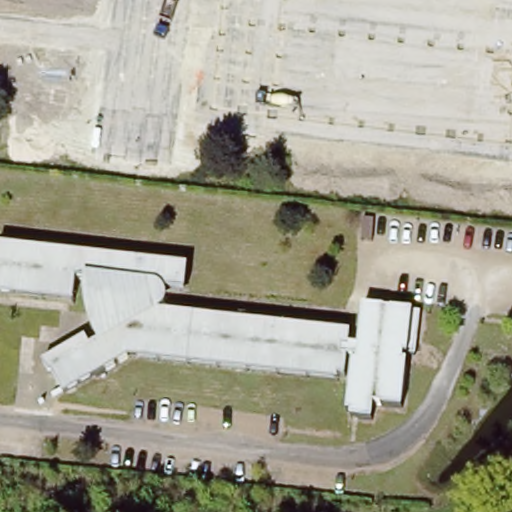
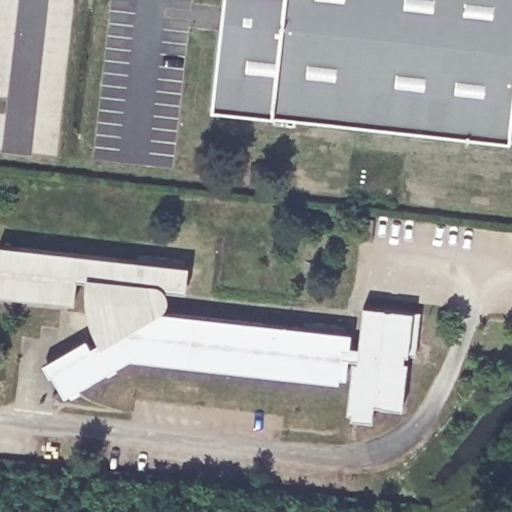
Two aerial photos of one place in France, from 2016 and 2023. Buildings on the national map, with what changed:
new [(272,115),(211,109),(223,0),(512,0),(512,107),(508,142),(272,115)]
unchanged [(185,308),(350,334),(339,383),(130,361),(60,394),(40,363),(93,330),(89,320),(87,315),(85,304),(0,297),(0,243),(189,266),(185,308)]
unchanged [(350,334),(350,345),(358,345),(362,305),(412,310),(420,311),(415,354),(409,353),(404,353),(403,360),(407,361),(402,408),(382,406),(382,404),(374,403),(372,419),(352,417),(352,412),(346,411),(352,360),(357,360),(357,357),(349,357),(346,377),(340,376),(350,334)]

